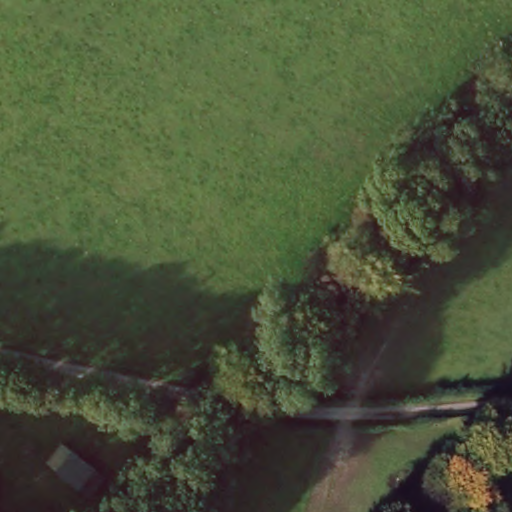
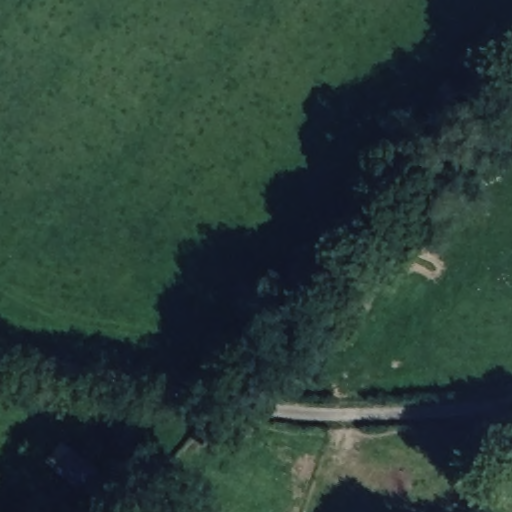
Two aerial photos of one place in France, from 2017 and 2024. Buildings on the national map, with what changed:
unchanged [(92,466),(75,488),(50,468),(67,445),(92,466)]

